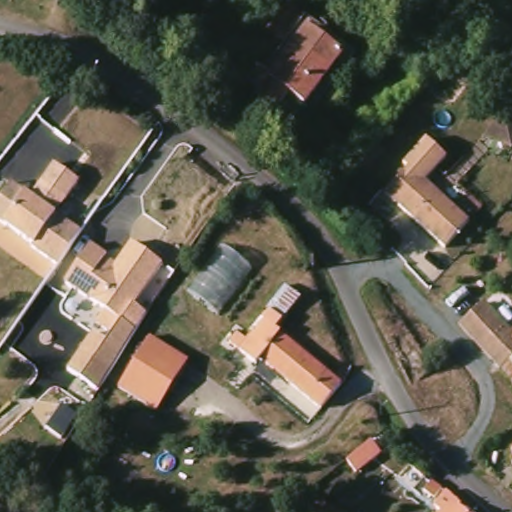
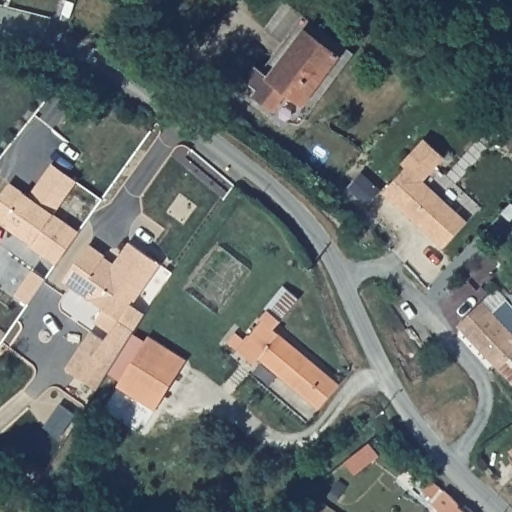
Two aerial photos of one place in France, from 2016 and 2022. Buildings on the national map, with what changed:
unchanged [(261,37),(286,6),(305,17),(347,47),(339,59),(306,36),(273,83),(263,77),(282,51),(261,37)]
unchanged [(339,59),(304,111),(287,99),(274,117),(254,103),(258,98),(243,87),(255,72),(263,77),(273,83),(306,36),(339,59)]
unchanged [(512,113),(512,139),(499,132),(512,113)]
unchanged [(382,192),(425,140),(446,158),(425,181),(469,224),(445,249),(382,192)]
unchanged [(53,165),(78,181),(56,211),(32,195),(53,165)]
unchanged [(33,240),(0,219),(0,194),(4,187),(9,180),(17,186),(80,226),(63,252),(58,260),(31,242),(33,240)]
unchanged [(121,318),(138,330),(133,339),(122,357),(104,388),(103,390),(71,370),(96,332),(107,338),(112,331),(95,320),(104,307),(62,281),(87,243),(114,261),(127,240),(159,261),(121,318)]
unchanged [(318,410),(257,358),(252,364),(228,343),(236,335),(243,341),(259,321),(258,320),(265,312),(264,310),(283,288),(298,301),(273,331),(338,386),(318,410)]
unchanged [(476,345),(474,343),(457,325),(482,302),(500,323),(512,336),(512,352),(494,366),(476,345)]
unchanged [(119,387),(149,336),(187,360),(156,410),(119,387)]
unchanged [(494,366),(512,352),(512,386),(506,380),(494,366)]
unchanged [(344,460),(370,441),(382,454),(355,473),(344,460)]
unchanged [(439,499),(429,490),(439,480),(447,487),(448,488),(439,499)]
unchanged [(444,511),(439,506),(452,492),(457,496),(476,512),(443,512),(444,511)]

